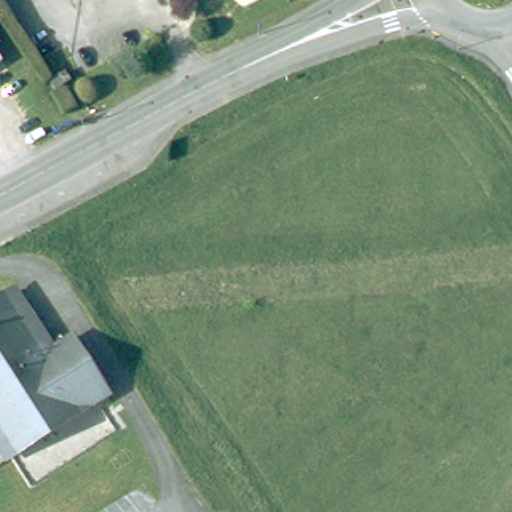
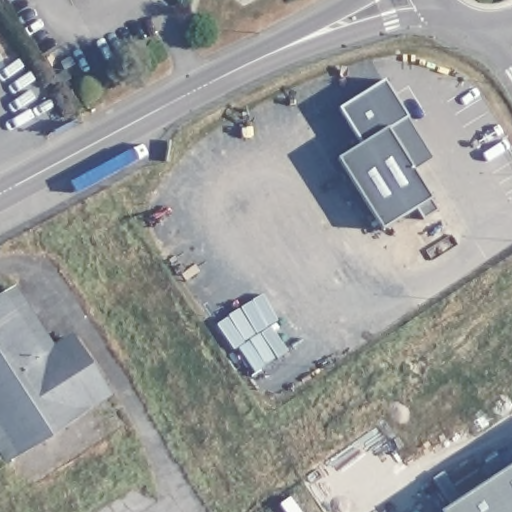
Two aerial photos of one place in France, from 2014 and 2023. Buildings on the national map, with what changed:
unchanged [(1,60),(0,61),(0,59),(1,60)]
new [(414,172),(429,199),(383,227),(338,159),(357,148),(347,132),(352,130),(339,110),(385,81),(408,117),(432,158),(414,172)]
unchanged [(9,292),(48,353),(69,339),(105,394),(8,457),(0,445),(0,298),(9,292)]
new [(512,465),(512,512),(440,512),(440,511),(512,465)]

